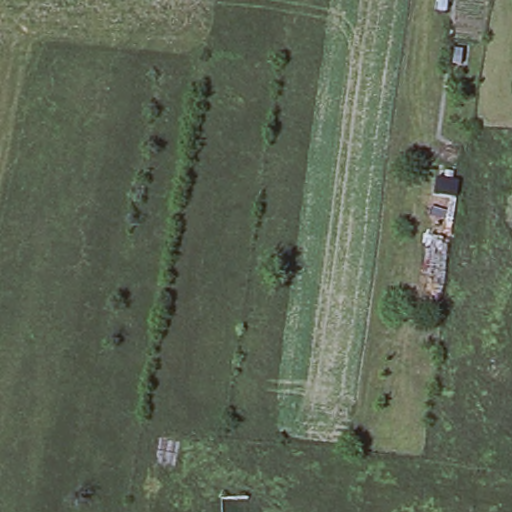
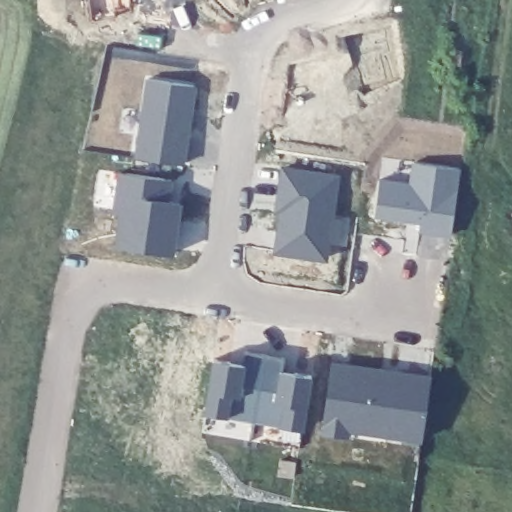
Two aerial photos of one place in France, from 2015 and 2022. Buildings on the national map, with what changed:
new [(115,13),(115,20),(90,23),(88,0),(131,0),(132,12),(115,13)]
new [(197,89),(186,168),(136,159),(146,81),(197,89)]
new [(411,184),(414,164),(460,171),(451,239),(420,234),(421,226),(375,219),(381,181),(411,184)]
new [(340,177),(335,217),(352,218),(349,249),(332,247),(332,257),(327,256),(327,265),(272,255),(279,215),(274,214),(281,168),(340,177)]
new [(171,184),(167,204),(182,206),(175,259),(116,249),(121,214),(113,212),(120,175),(171,184)]
new [(212,357),(242,362),(244,349),(285,356),(282,369),(311,374),(302,428),(204,411),(212,357)]
new [(431,378),(424,446),(346,434),(345,439),(321,436),(331,363),(431,378)]

